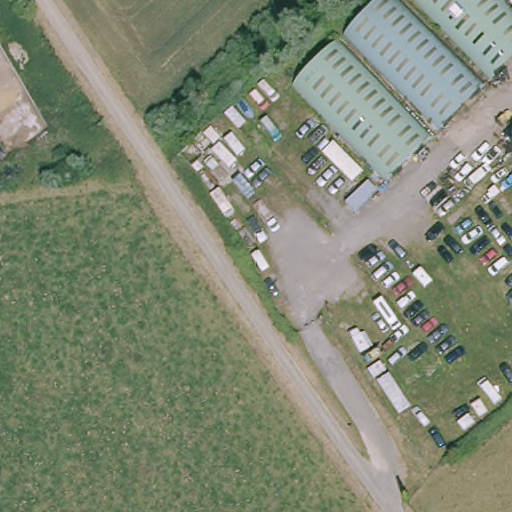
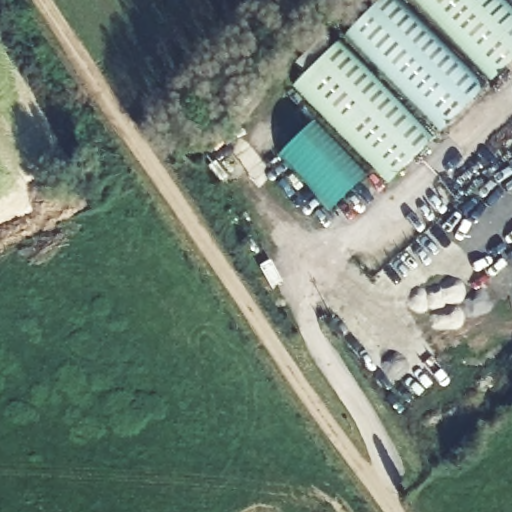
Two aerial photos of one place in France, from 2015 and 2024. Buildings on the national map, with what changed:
unchanged [(440,130),(342,32),(377,0),(401,0),(488,84),(440,130)]
unchanged [(512,60),(493,79),(417,0),(504,0),(512,8),(512,60)]
unchanged [(433,137),(385,184),(291,85),(337,40),(433,137)]
new [(325,201),(295,170),(286,179),(270,162),(312,122),(364,177),(334,205),(325,201)]

